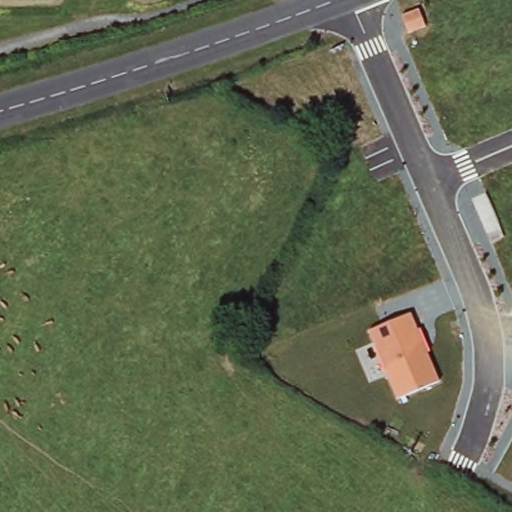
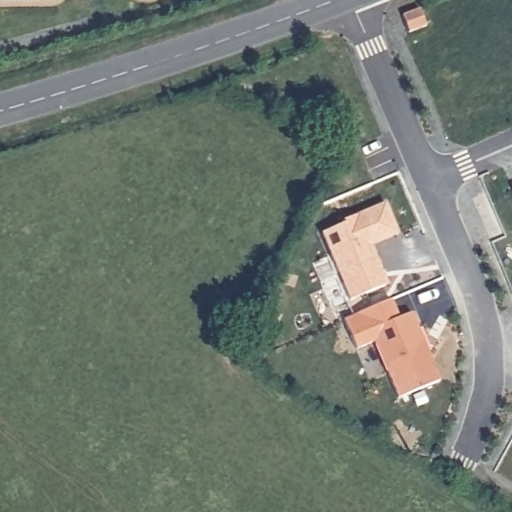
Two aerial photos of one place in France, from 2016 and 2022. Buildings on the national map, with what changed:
demolished [(430,0),(435,12),(436,14),(417,21),(411,4),(420,0),(430,0)]
new [(421,10),(426,25),(427,27),(409,34),(402,16),(421,10)]
new [(512,193),(512,206),(507,195),(512,193)]
new [(345,227),(343,224),(386,207),(398,237),(371,249),(382,275),(378,275),(385,289),(350,303),(322,236),(345,227)]
unchanged [(440,380),(397,399),(369,331),(413,311),(440,380)]

